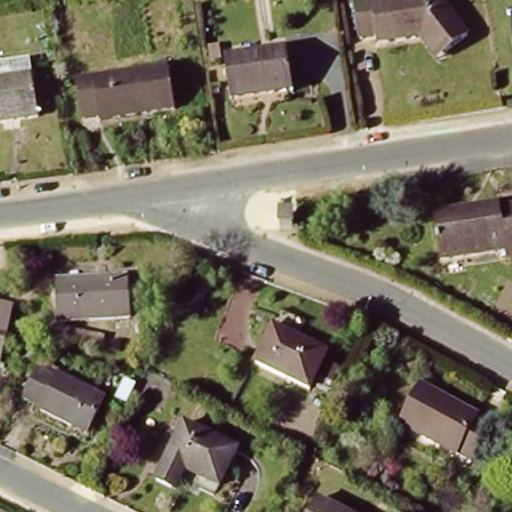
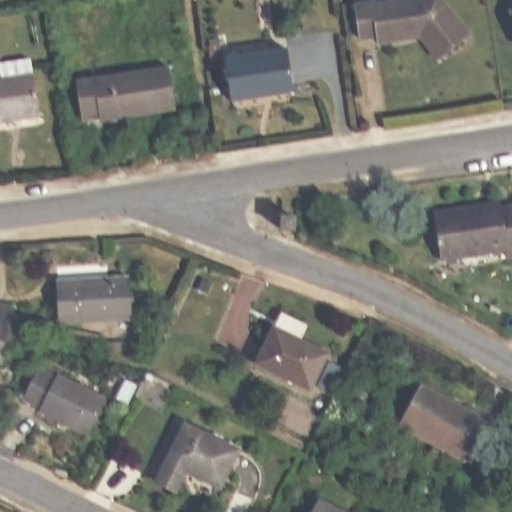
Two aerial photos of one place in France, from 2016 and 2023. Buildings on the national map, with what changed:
unchanged [(426,41),(383,45),(382,38),(364,39),(359,4),(379,1),(378,4),(409,0),(446,0),(472,39),(452,53),(442,60),(427,42),(426,41)]
unchanged [(294,90),(230,100),(225,60),(287,51),(294,90)]
unchanged [(0,87),(2,86),(0,72),(0,68),(30,66),(32,82),(37,124),(0,128),(0,87)]
unchanged [(173,114),(83,126),(77,86),(167,74),(173,114)]
unchanged [(510,254),(444,270),(433,225),(464,217),(465,223),(500,214),(510,254)]
unchanged [(139,319),(69,324),(67,287),(136,282),(139,319)]
unchanged [(0,313),(15,315),(10,343),(6,365),(0,363),(0,313)]
unchanged [(312,389),(269,367),(286,333),(330,356),(312,389)]
unchanged [(56,384),(57,382),(103,405),(87,438),(40,415),(42,413),(21,402),(35,374),(56,384)]
unchanged [(470,466),(405,429),(425,393),(490,430),(470,466)]
unchanged [(218,496),(185,479),(173,502),(154,492),(188,424),(241,451),(218,496)]
unchanged [(321,499),(347,512),(314,512),(321,499)]

